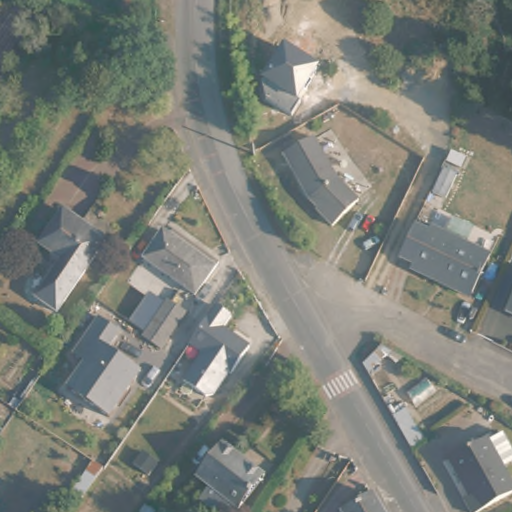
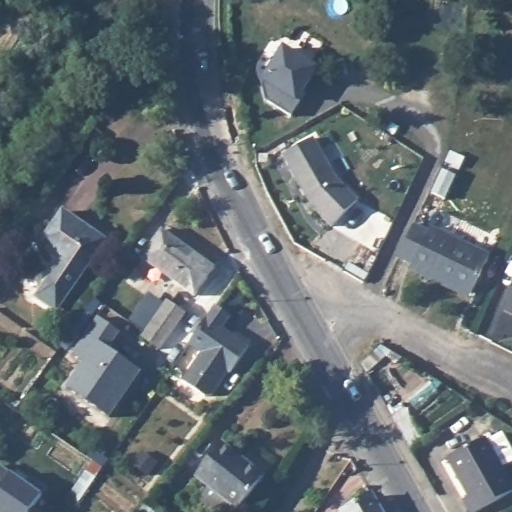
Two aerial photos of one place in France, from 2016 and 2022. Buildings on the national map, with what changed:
unchanged [(267,100),(262,79),(283,48),(318,69),(297,100),(291,114),(267,100)]
unchanged [(319,210),(319,207),(308,200),(298,180),(300,178),(294,168),(291,170),(283,155),(315,138),(340,182),(359,203),(334,226),(319,210)]
unchanged [(59,310),(36,296),(60,260),(39,245),(64,210),(105,239),(59,310)]
unchanged [(439,281),(411,267),(412,264),(398,257),(416,222),(430,229),(432,224),(491,253),(474,288),(470,296),(439,281)]
unchanged [(215,267),(212,271),(197,294),(145,256),(164,229),(192,251),(215,267)]
unchanged [(512,288),(512,313),(502,308),(512,288)]
unchanged [(181,313),(157,348),(139,334),(164,300),(181,313)]
unchanged [(232,317),(225,329),(249,347),(231,373),(230,371),(215,394),(205,395),(182,379),(199,354),(189,347),(216,308),(232,317)]
unchanged [(131,379),(105,416),(64,387),(81,362),(70,354),(95,317),(116,332),(104,348),(126,364),(136,371),(131,379)]
unchanged [(397,422),(408,414),(418,431),(407,440),(397,422)]
unchanged [(512,459),(512,463),(501,469),(512,489),(512,494),(481,512),(469,512),(463,501),(467,499),(448,463),(485,442),(486,443),(499,436),(512,459)]
unchanged [(210,486),(197,475),(222,443),(265,475),(236,512),(219,512),(201,498),(210,486)]
unchanged [(76,507),(66,500),(94,461),(103,467),(76,507)]
new [(27,484),(32,476),(48,487),(34,508),(40,512),(0,512),(0,466),(27,484)]
unchanged [(385,512),(350,512),(376,497),(382,507),(385,512)]

